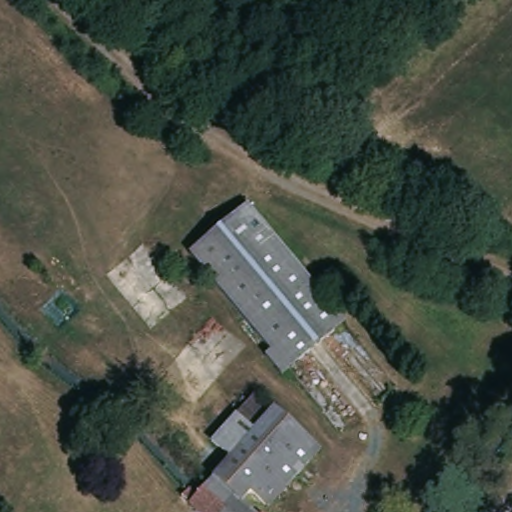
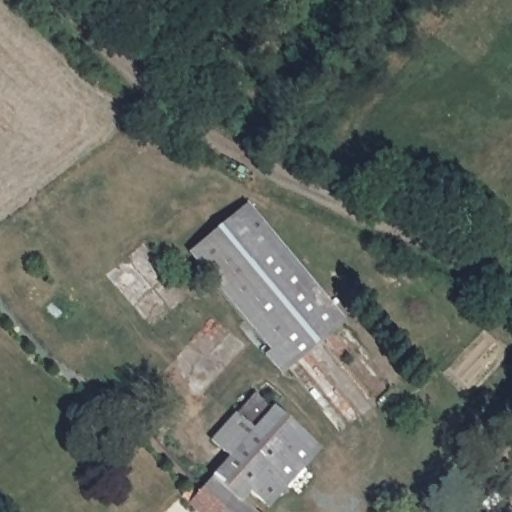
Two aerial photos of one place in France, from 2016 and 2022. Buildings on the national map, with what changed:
unchanged [(267,357),(274,351),(192,254),(250,206),(344,317),(280,373),(267,357)]
unchanged [(280,412),(233,457),(217,442),(262,395),(280,412)]
unchanged [(205,485),(233,457),(280,412),(327,453),(302,478),(313,488),(293,511),(282,501),(272,512),(202,512),(189,501),(179,490),(188,482),(198,492),(205,485)]

